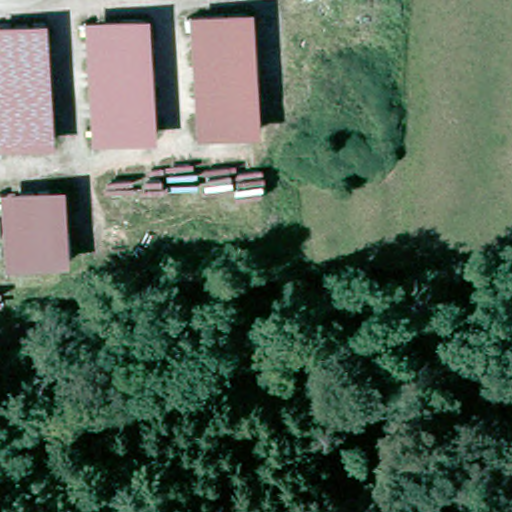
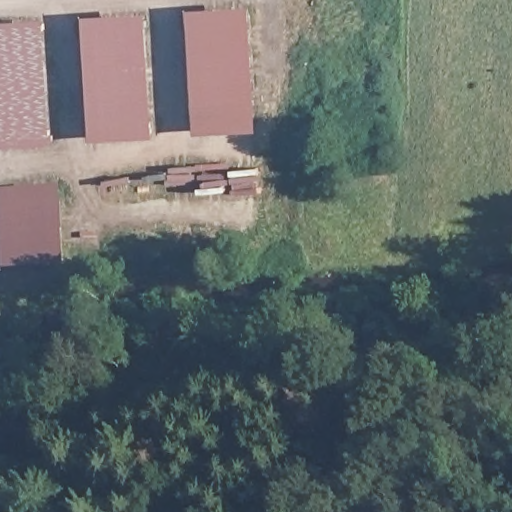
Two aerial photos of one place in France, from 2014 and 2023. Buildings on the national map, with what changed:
unchanged [(252,9),(260,122),(195,131),(192,10),(252,9)]
unchanged [(156,136),(95,139),(85,16),(147,13),(156,136)]
unchanged [(0,114),(0,20),(45,16),(50,25),(50,62),(55,141),(11,143),(1,143),(0,114)]
unchanged [(5,190),(65,185),(70,263),(11,266),(5,190)]

